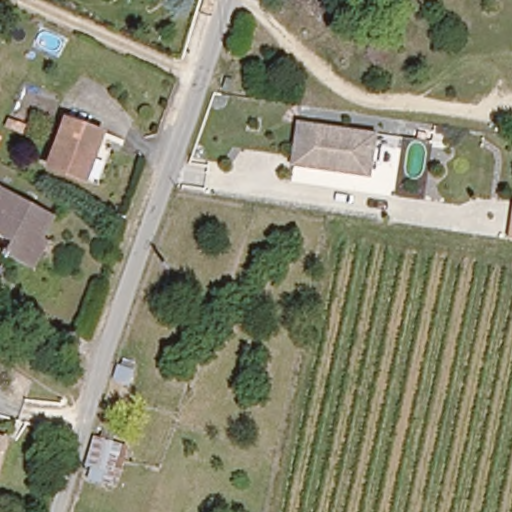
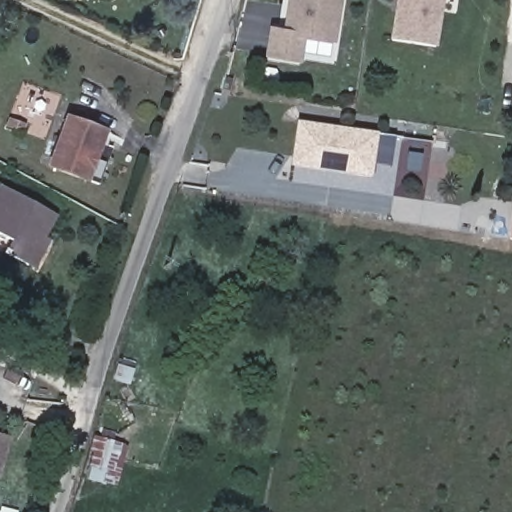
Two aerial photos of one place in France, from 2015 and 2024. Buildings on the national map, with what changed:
new [(334,40),(303,35),(299,59),(268,54),(272,29),(286,31),(291,0),(341,0),(334,40)]
new [(395,0),(443,0),(437,47),(389,40),(395,0)]
unchanged [(379,130),(374,175),(295,164),(300,120),(379,130)]
unchanged [(60,122),(96,136),(92,149),(103,155),(90,186),(41,169),(60,122)]
unchanged [(50,212),(37,234),(21,266),(1,255),(0,254),(0,186),(50,212)]
unchanged [(512,207),(512,243),(507,242),(512,207)]
unchanged [(115,487),(86,479),(89,468),(82,466),(94,434),(129,446),(115,487)]
unchanged [(10,443),(0,476),(0,440),(10,443)]

